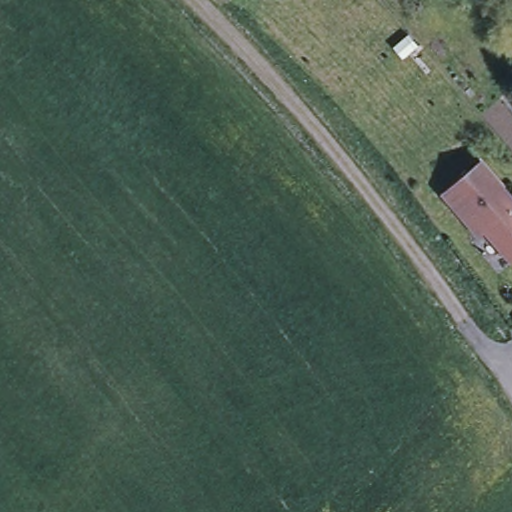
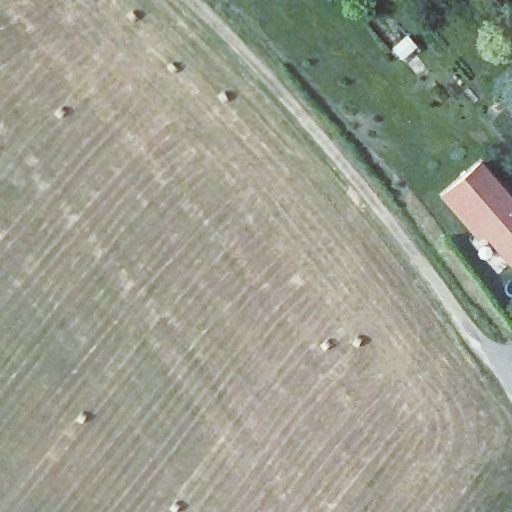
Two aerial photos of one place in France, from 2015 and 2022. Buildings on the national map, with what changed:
unchanged [(512,209),(512,265),(507,269),(480,238),(475,242),(474,240),(439,200),(475,168),(512,209)]

